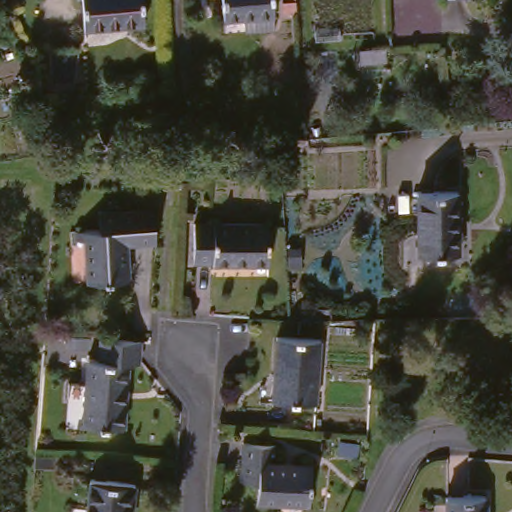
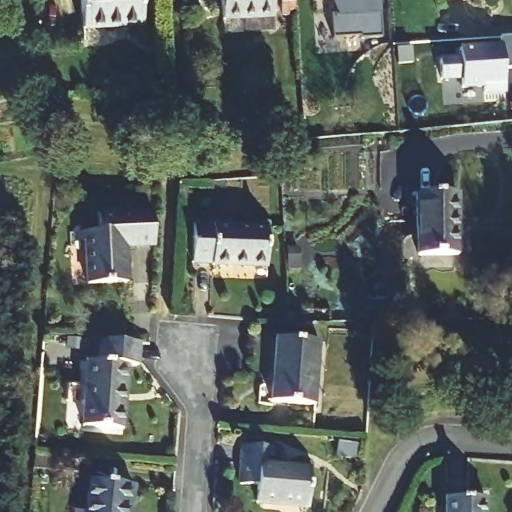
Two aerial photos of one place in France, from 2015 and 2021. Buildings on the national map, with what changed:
unchanged [(76,39),(74,0),(135,0),(138,35),(76,39)]
unchanged [(214,25),(213,0),(266,0),(269,33),(249,35),(239,35),(238,24),(214,25)]
new [(384,9),(386,32),(364,34),(364,32),(336,34),(335,10),(339,10),(339,0),(381,0),(382,9),(384,9)]
new [(458,47),(500,44),(500,35),(512,35),(512,66),(503,67),(505,90),(484,91),(483,84),(461,86),(461,76),(440,78),(438,59),(459,57),(458,47)]
unchanged [(411,200),(454,201),(453,263),(411,262),(411,200)]
unchanged [(126,285),(87,288),(84,236),(98,235),(97,216),(119,215),(119,216),(153,215),(154,249),(125,250),(126,285)]
unchanged [(211,268),(209,267),(189,265),(191,226),(266,230),(266,270),(264,271),(211,268)]
unchanged [(314,409),(271,405),(276,340),(319,344),(314,409)]
unchanged [(136,368),(128,368),(123,433),(81,430),(86,365),(96,365),(99,343),(138,346),(136,368)]
unchanged [(310,477),(307,512),(255,512),(256,494),(238,492),(241,452),(274,455),(273,474),(310,477)]
unchanged [(88,488),(134,494),(131,512),(85,512),(88,488)]
unchanged [(445,506),(486,505),(486,512),(445,512),(445,506)]

